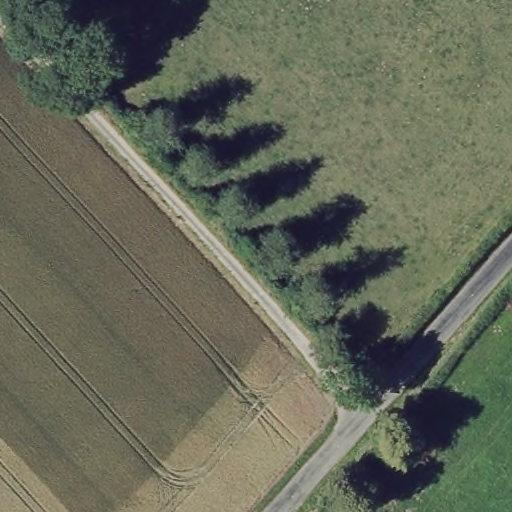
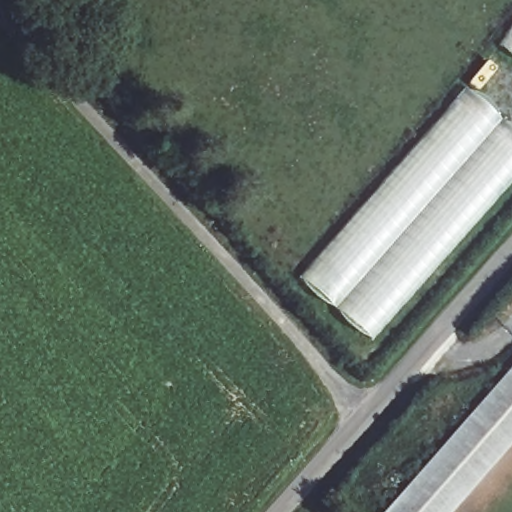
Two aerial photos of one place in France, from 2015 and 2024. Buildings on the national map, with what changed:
new [(499,47),(512,25),(512,55),(499,47)]
new [(298,278),(464,87),(512,129),(512,182),(371,342),(298,278)]
new [(453,512),(384,512),(512,366),(512,444),(453,512)]

